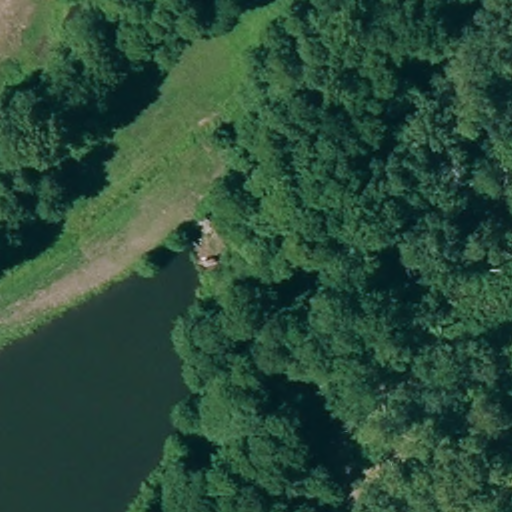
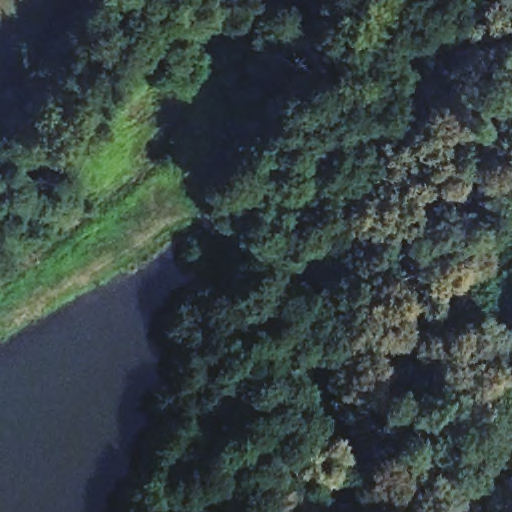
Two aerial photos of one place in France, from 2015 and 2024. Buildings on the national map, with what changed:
unchanged [(211,176),(241,195),(217,231),(189,212),(211,176)]

